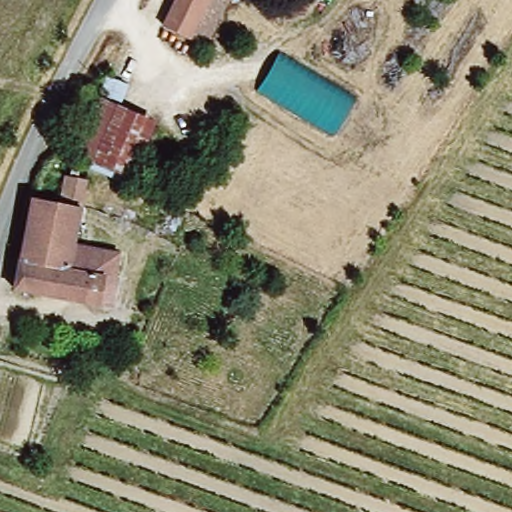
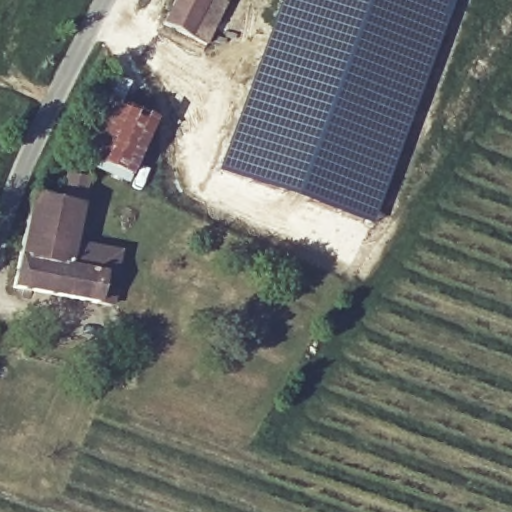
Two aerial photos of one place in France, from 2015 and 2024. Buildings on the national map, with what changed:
unchanged [(201,39),(169,22),(181,0),(222,0),(201,39)]
new [(210,170),(225,128),(256,59),(277,0),(453,0),(400,147),(371,223),(352,263),(305,245),(266,224),(200,193),(210,170)]
demolished [(257,91),(281,51),(361,96),(337,133),(257,91)]
unchanged [(127,173),(81,149),(110,93),(156,116),(127,173)]
unchanged [(79,208),(72,248),(116,255),(112,278),(102,277),(97,304),(12,288),(29,200),(79,208)]

